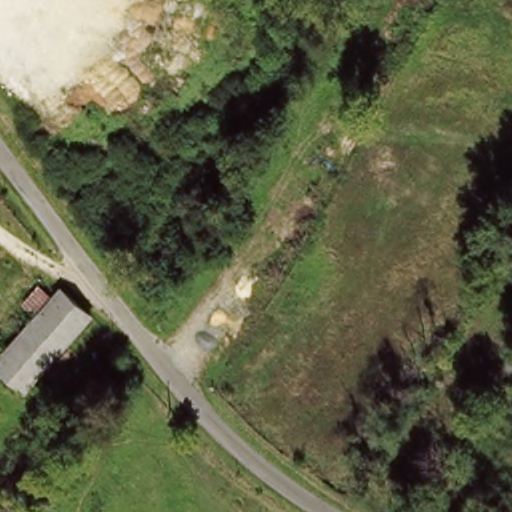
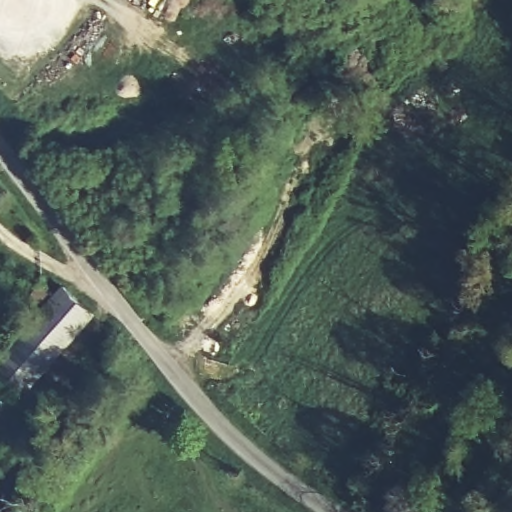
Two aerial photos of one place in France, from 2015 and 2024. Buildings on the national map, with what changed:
unchanged [(39,284),(51,295),(61,285),(93,317),(24,388),(0,364),(0,348),(34,313),(22,301),(39,284)]

